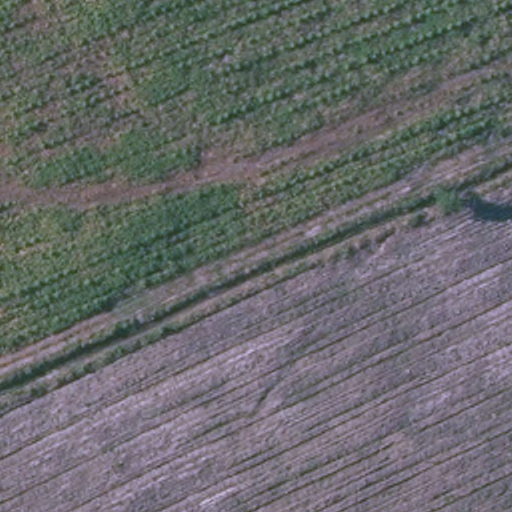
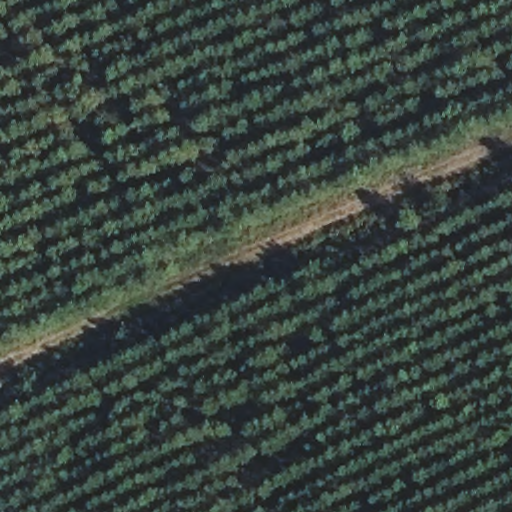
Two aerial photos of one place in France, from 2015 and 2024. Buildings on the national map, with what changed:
[]

